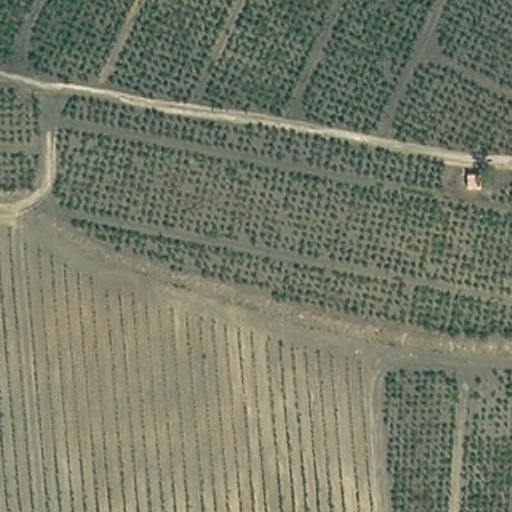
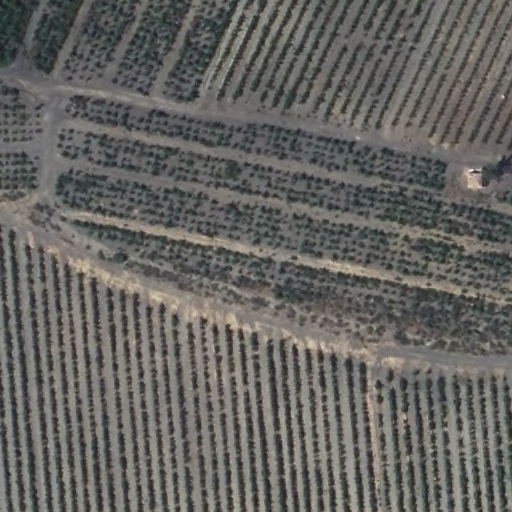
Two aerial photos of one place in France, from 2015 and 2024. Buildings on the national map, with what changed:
unchanged [(490,168),(492,183),(470,183),(470,169),(490,168)]

